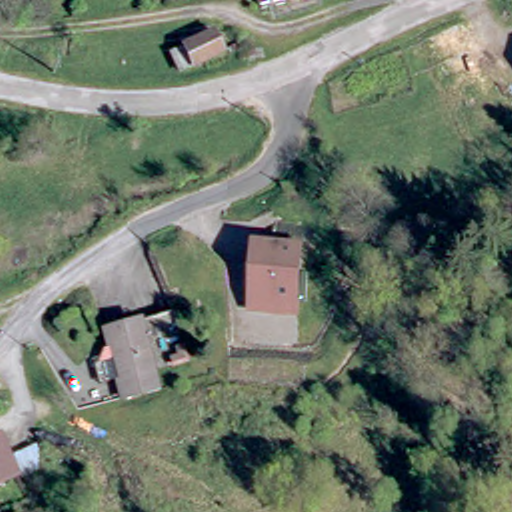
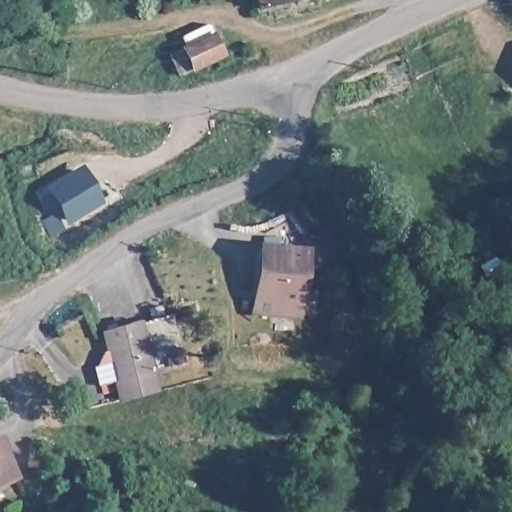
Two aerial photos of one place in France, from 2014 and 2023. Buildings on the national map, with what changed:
unchanged [(251,0),(279,0),(252,6),(251,0)]
unchanged [(214,54),(183,64),(174,34),(189,33),(215,35),(214,54)]
new [(81,165),(104,205),(69,226),(45,189),(81,165)]
unchanged [(257,249),(308,251),(301,320),(250,315),(257,249)]
unchanged [(156,320),(169,368),(135,377),(140,392),(105,401),(100,383),(83,387),(78,369),(81,368),(87,355),(93,353),(89,337),(156,320)]
unchanged [(0,485),(0,454),(13,477),(0,485)]

